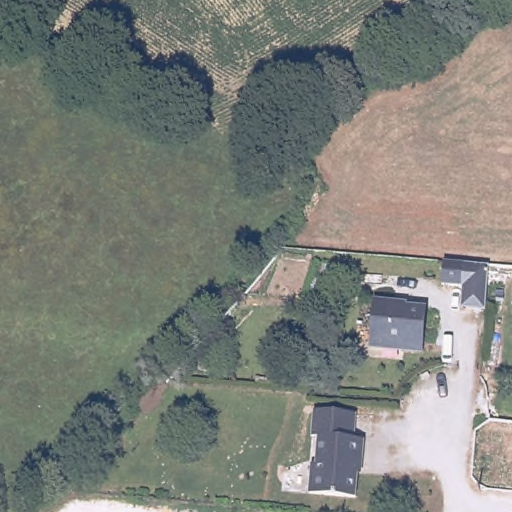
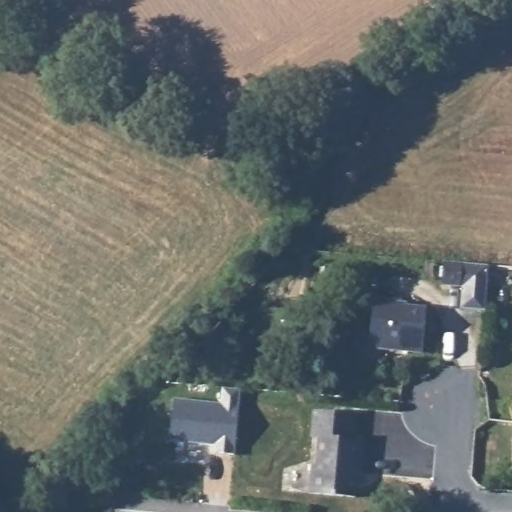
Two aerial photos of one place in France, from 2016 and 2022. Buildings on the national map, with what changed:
unchanged [(486,266),(492,267),(488,310),(467,307),(467,286),(446,284),(447,263),(486,266)]
unchanged [(408,306),(427,308),(423,352),(402,351),(402,344),(372,342),(376,301),(406,303),(408,306)]
new [(173,399),(220,403),(222,387),(241,389),(237,455),(214,453),(215,445),(169,440),(173,399)]
unchanged [(356,437),(366,438),(366,456),(361,456),(359,495),(312,492),(315,462),(320,462),(321,435),(315,435),(317,409),(358,412),(356,437)]

